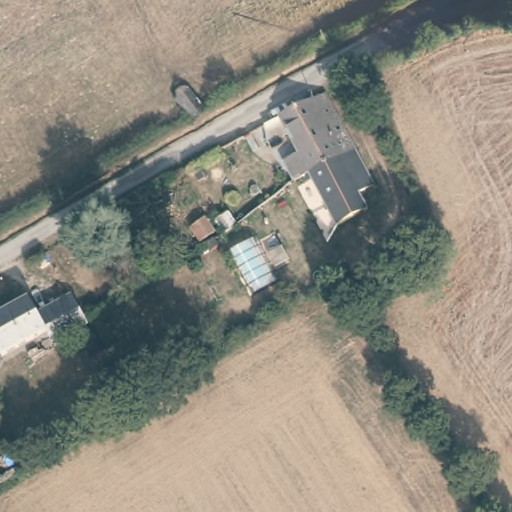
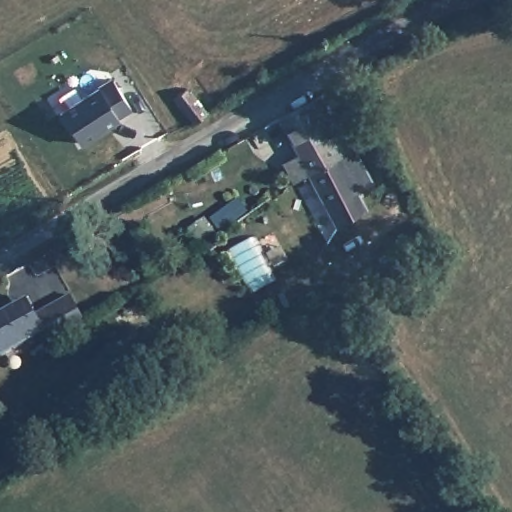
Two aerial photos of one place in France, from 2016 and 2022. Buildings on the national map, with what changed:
new [(118,121),(81,145),(58,112),(98,86),(112,78),(133,110),(118,121)]
unchanged [(194,123),(175,99),(186,88),(208,112),(194,123)]
unchanged [(294,181),(284,164),(300,155),(279,118),(325,92),(354,149),(303,176),(294,181)]
unchanged [(357,194),(365,209),(336,225),(311,180),(307,182),(303,176),(354,149),(372,185),(357,194)]
unchanged [(214,219),(234,205),(244,217),(224,231),(214,219)]
unchanged [(432,241),(406,260),(394,244),(420,224),(432,241)]
unchanged [(72,297),(90,335),(57,352),(37,316),(72,297)]

